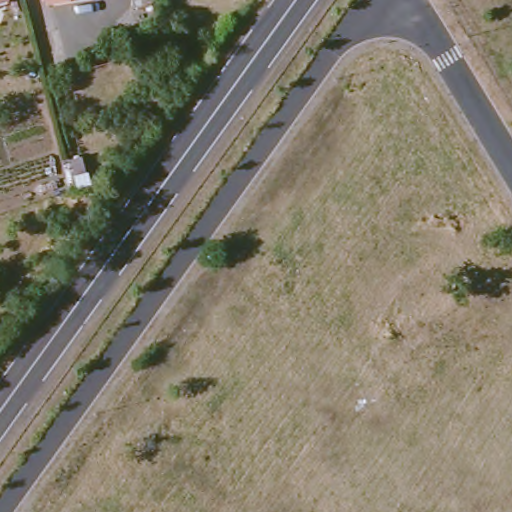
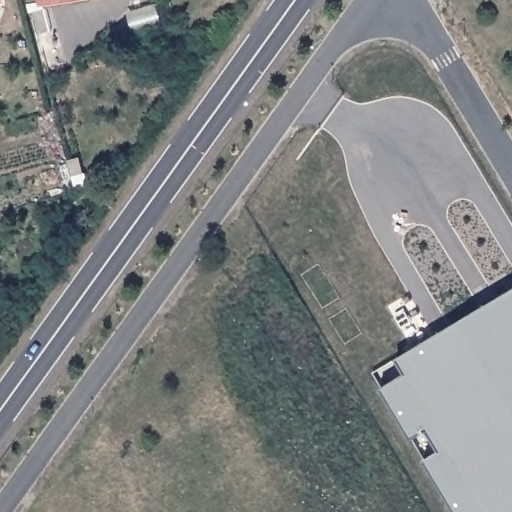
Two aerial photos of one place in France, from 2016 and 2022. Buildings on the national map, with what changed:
demolished [(5,0),(10,18),(0,20),(0,0),(5,0)]
unchanged [(42,0),(50,0),(43,1),(42,0)]
new [(372,374),(512,290),(512,512),(453,512),(372,374)]

